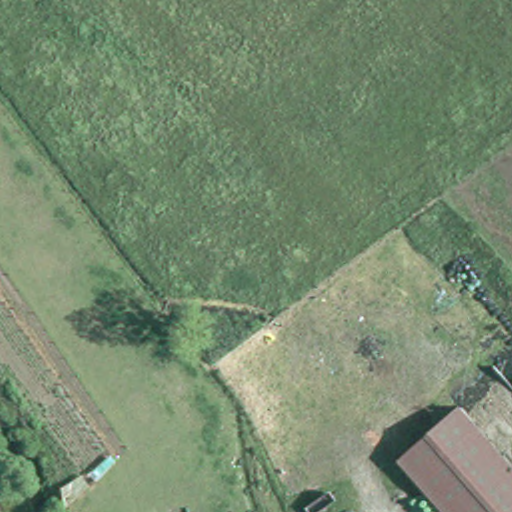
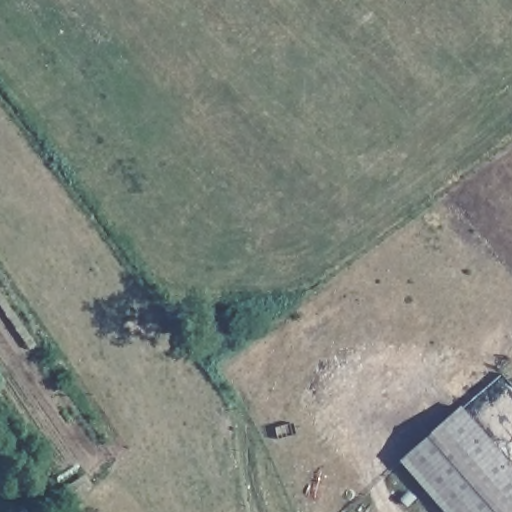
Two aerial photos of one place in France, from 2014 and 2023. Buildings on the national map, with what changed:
unchanged [(512,469),(512,512),(443,512),(397,460),(459,407),(512,469)]

